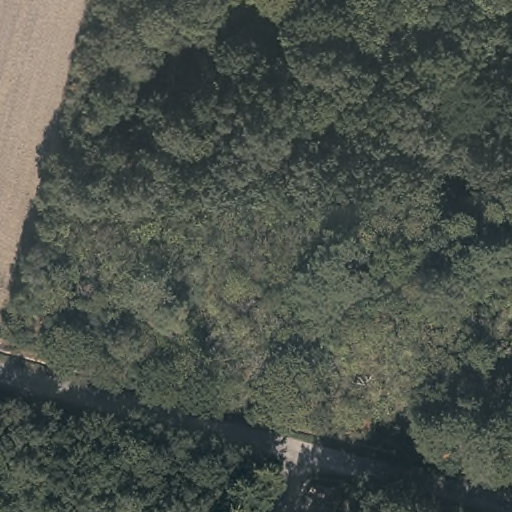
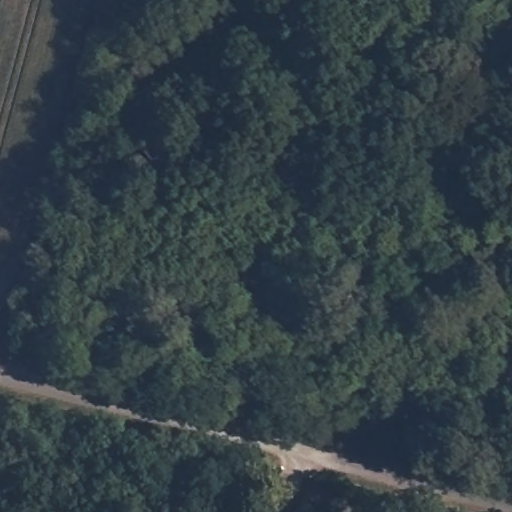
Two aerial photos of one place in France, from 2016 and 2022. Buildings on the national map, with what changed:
[]

